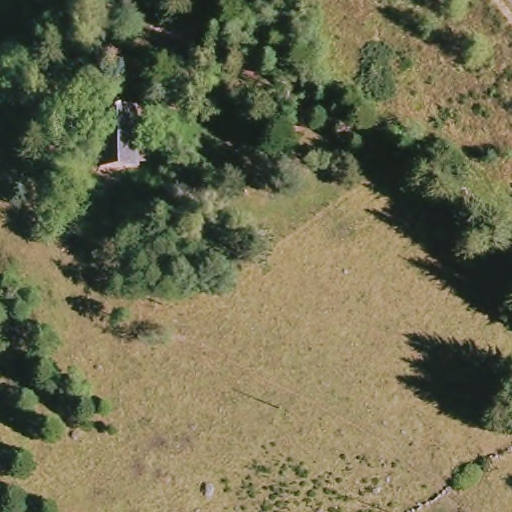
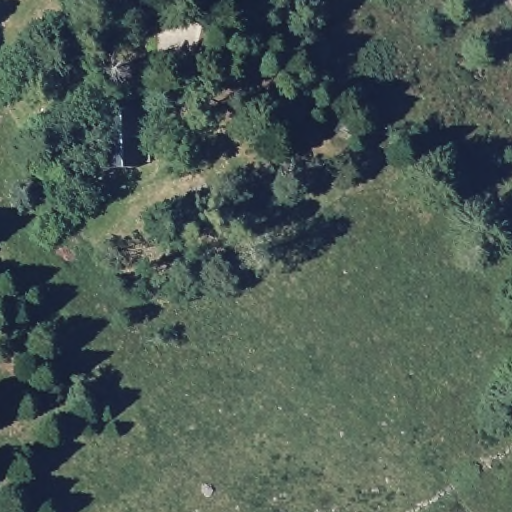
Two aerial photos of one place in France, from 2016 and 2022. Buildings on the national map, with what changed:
unchanged [(118,170),(113,109),(149,108),(153,169),(118,170)]

